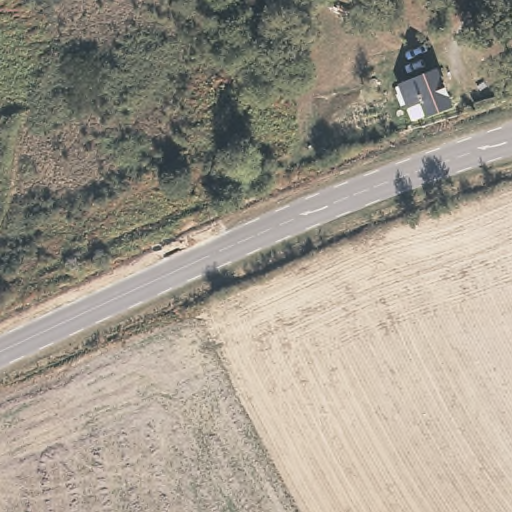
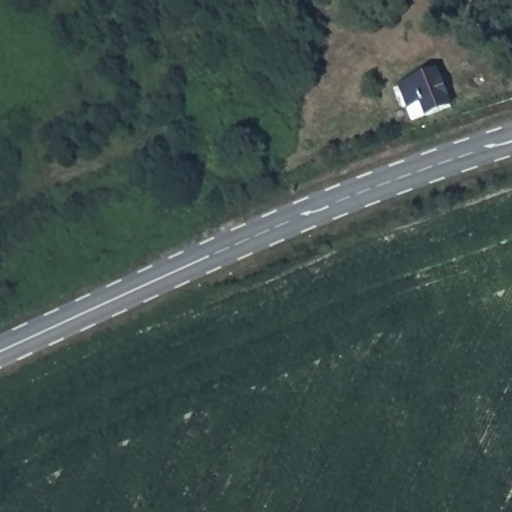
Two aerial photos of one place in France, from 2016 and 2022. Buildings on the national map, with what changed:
unchanged [(436,74),(446,109),(422,116),(421,114),(408,118),(399,85),(436,74)]

